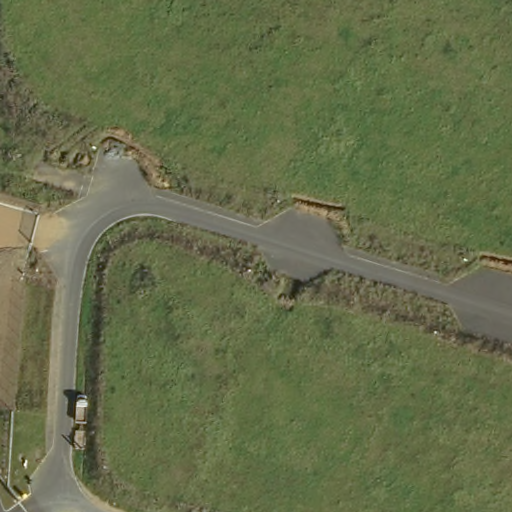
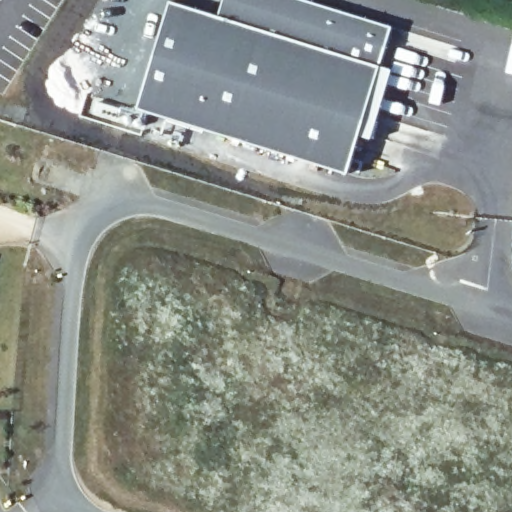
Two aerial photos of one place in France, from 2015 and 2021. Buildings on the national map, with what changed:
new [(378,65),(390,70),(370,136),(359,133),(347,175),(136,109),(167,3),(217,18),(223,0),(304,0),(391,26),(378,65)]

